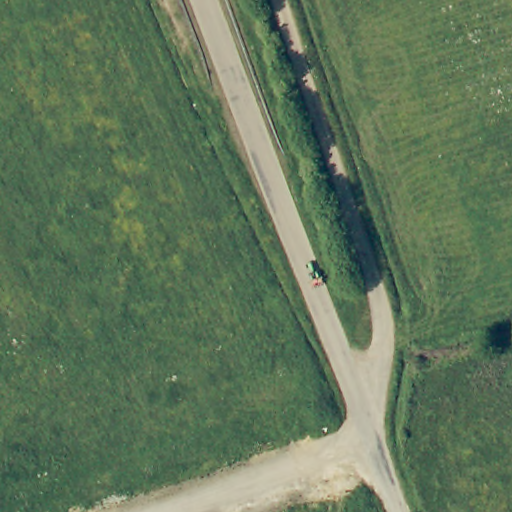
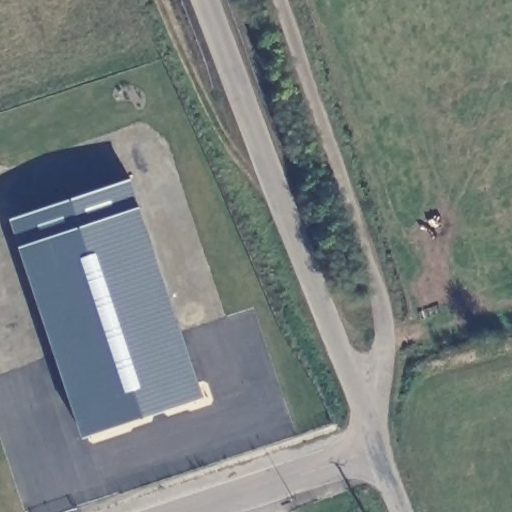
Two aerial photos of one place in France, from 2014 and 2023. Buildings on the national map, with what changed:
new [(131,182),(205,401),(85,441),(12,222),(131,182)]

